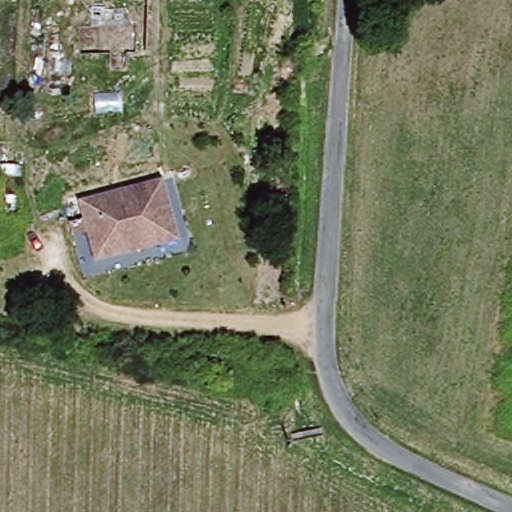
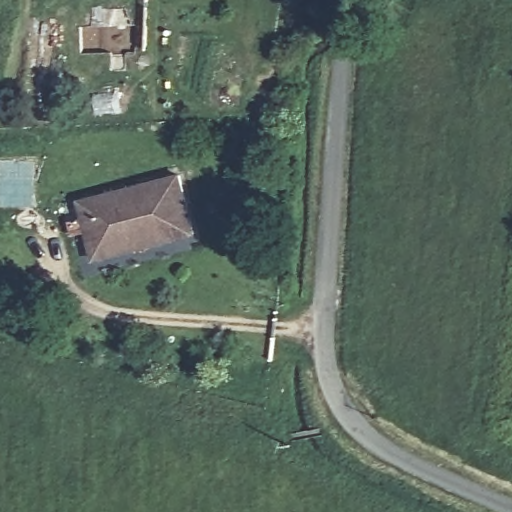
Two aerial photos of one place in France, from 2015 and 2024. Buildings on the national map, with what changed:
unchanged [(97,264),(83,207),(164,187),(177,244),(155,250),(121,259),(97,264)]

